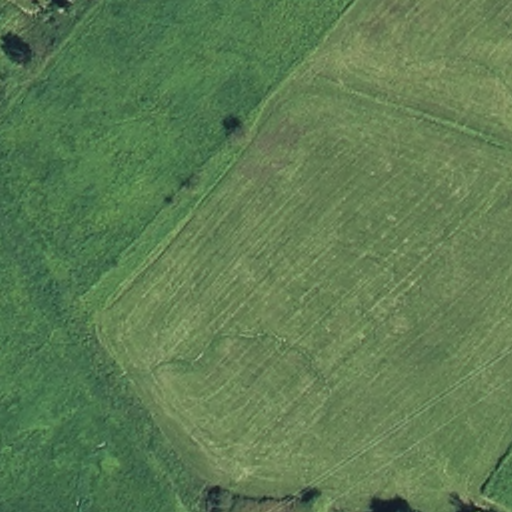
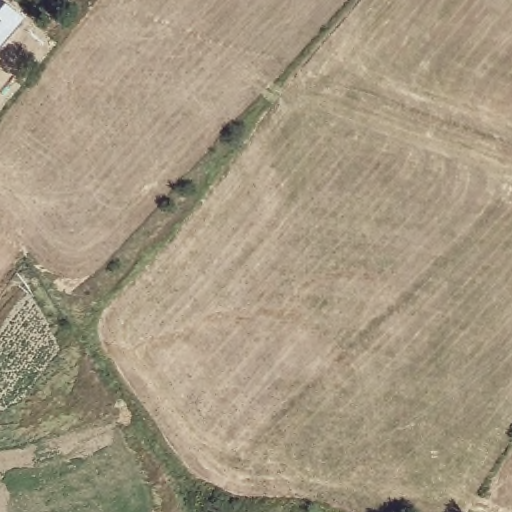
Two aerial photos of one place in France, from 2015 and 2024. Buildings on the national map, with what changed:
new [(23,16),(0,42),(0,0),(4,0),(23,16)]

